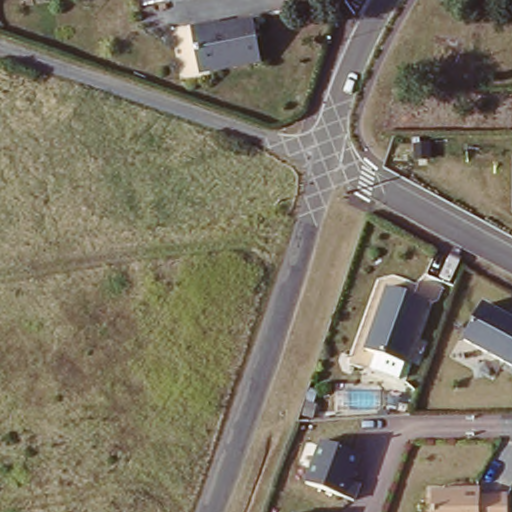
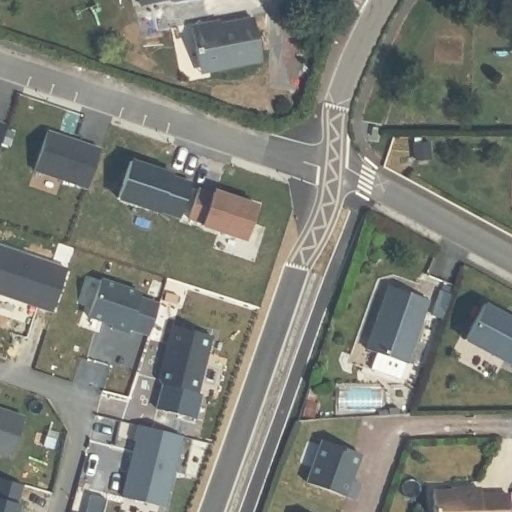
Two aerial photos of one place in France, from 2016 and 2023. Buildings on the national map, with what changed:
unchanged [(190,27),(250,16),(257,65),(197,74),(190,27)]
new [(0,142),(0,121),(6,124),(0,142)]
new [(100,150),(87,189),(33,170),(46,131),(100,150)]
new [(174,176),(171,182),(210,196),(213,188),(258,202),(245,242),(200,229),(202,222),(162,209),(160,216),(117,201),(130,161),(174,176)]
new [(52,312),(0,295),(0,245),(66,268),(52,312)]
new [(140,298),(159,303),(150,336),(130,329),(129,334),(110,329),(111,325),(89,318),(100,278),(141,292),(140,298)]
unchanged [(392,287),(432,302),(409,361),(370,347),(392,287)]
unchanged [(485,304),(512,317),(512,367),(463,341),(485,304)]
new [(199,392),(157,382),(171,325),(212,335),(199,392)]
new [(12,458),(0,454),(0,408),(25,417),(12,458)]
new [(181,436),(164,507),(120,496),(137,425),(181,436)]
unchanged [(325,440),(363,457),(357,477),(362,482),(358,497),(310,479),(325,440)]
new [(18,512),(0,512),(0,479),(25,486),(18,512)]
unchanged [(484,486),(486,494),(510,492),(512,512),(437,512),(435,487),(484,486)]

